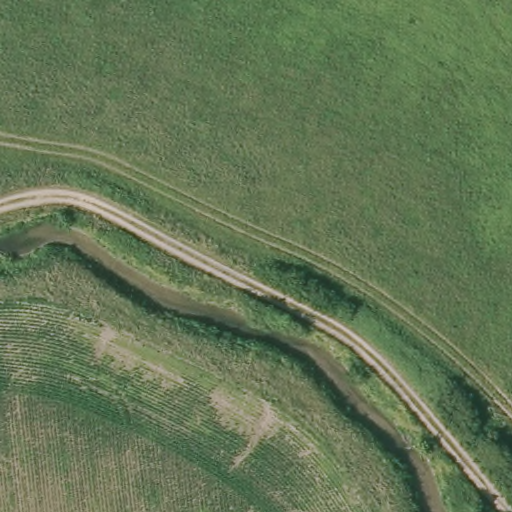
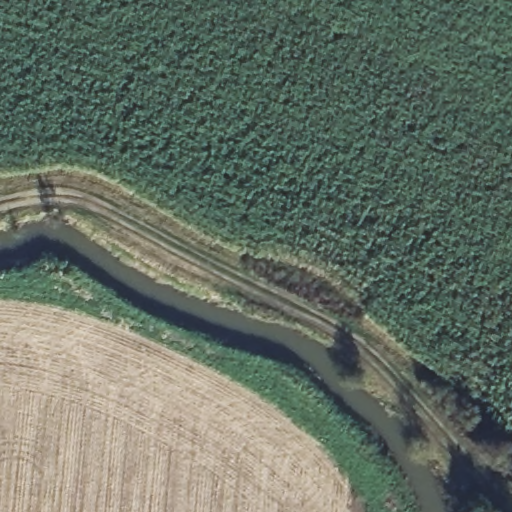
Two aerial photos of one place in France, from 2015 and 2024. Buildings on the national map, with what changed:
[]

